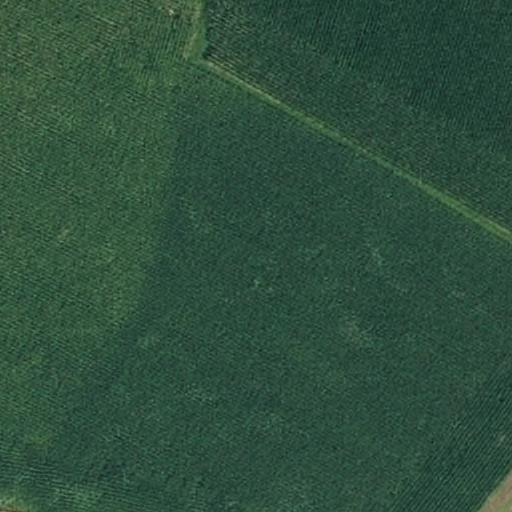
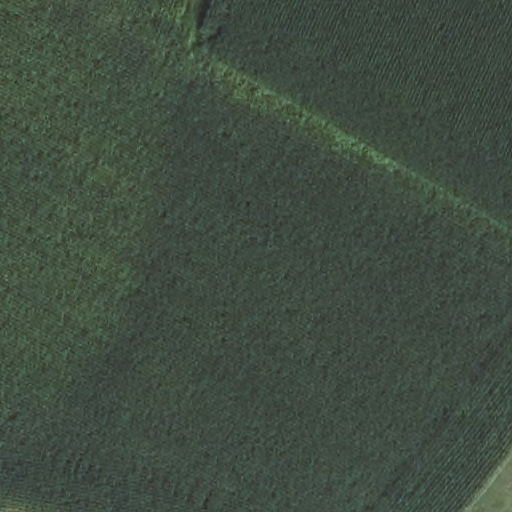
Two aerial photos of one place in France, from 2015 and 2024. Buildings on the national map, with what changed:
[]

